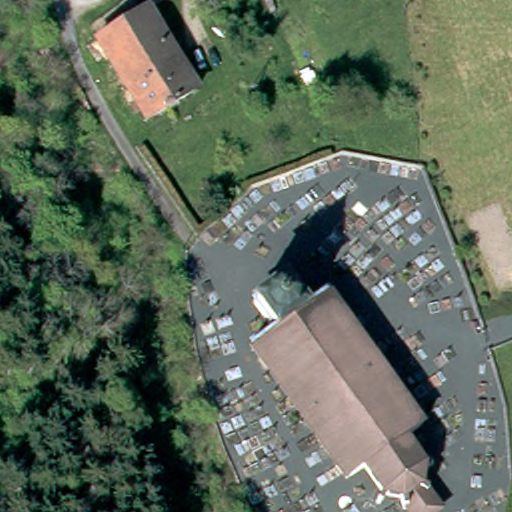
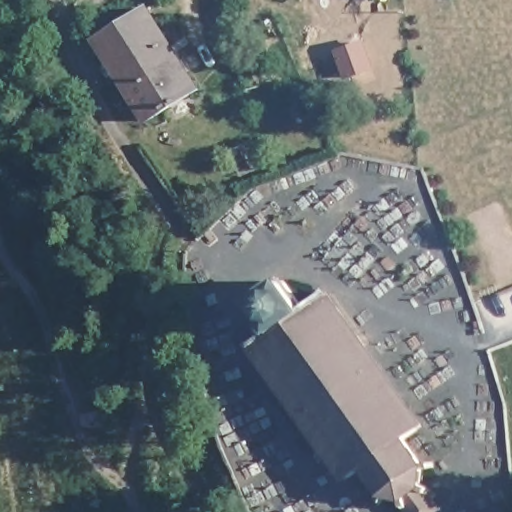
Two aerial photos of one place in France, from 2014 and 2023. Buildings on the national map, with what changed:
unchanged [(97,44),(147,13),(197,94),(147,125),(97,44)]
new [(364,44),(373,69),(348,79),(338,53),(364,44)]
unchanged [(401,508),(386,504),(382,512),(376,512),(383,502),(365,476),(345,489),(250,355),(272,339),(253,312),(285,290),(303,316),(324,302),(420,436),(402,449),(420,474),(430,474),(430,478),(420,478),(419,492),(430,499),(428,501),(436,512),(402,512),(401,508)]

